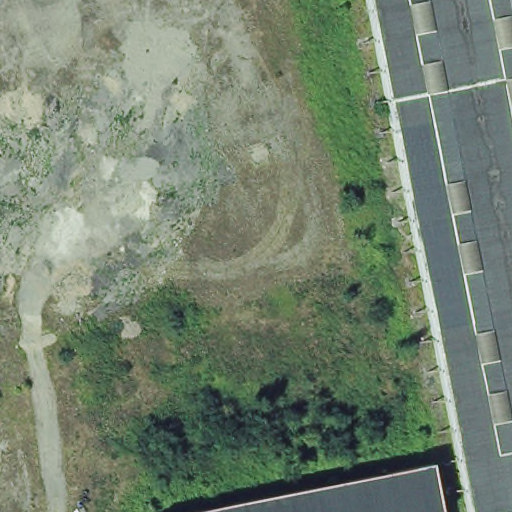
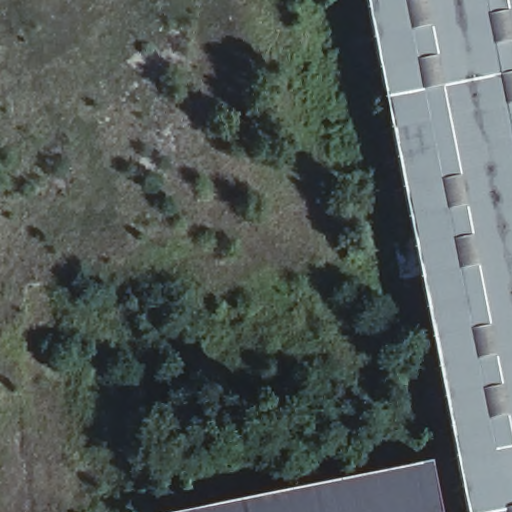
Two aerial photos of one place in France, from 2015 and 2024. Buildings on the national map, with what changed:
unchanged [(512,512),(461,512),(360,0),(512,0),(512,512)]
unchanged [(436,512),(183,512),(426,463),(436,512)]

